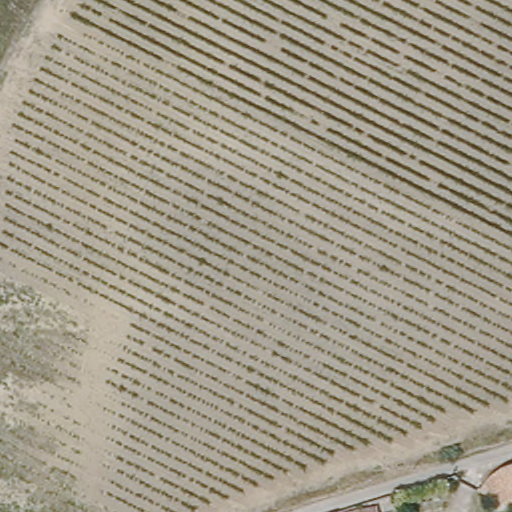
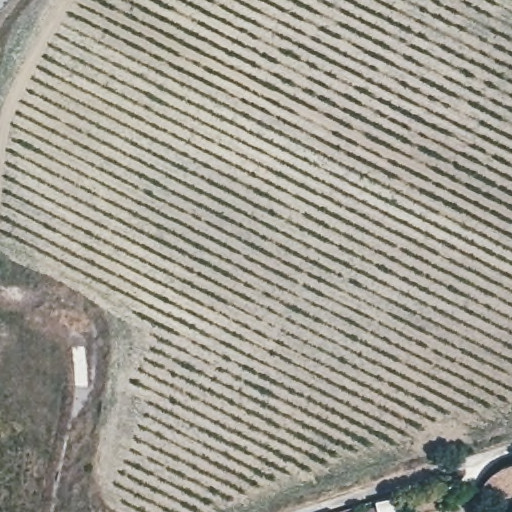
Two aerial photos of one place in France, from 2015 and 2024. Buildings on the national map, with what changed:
unchanged [(487,477),(502,467),(512,464),(512,505),(476,492),(487,477)]
unchanged [(381,505),(384,512),(356,512),(381,505)]

